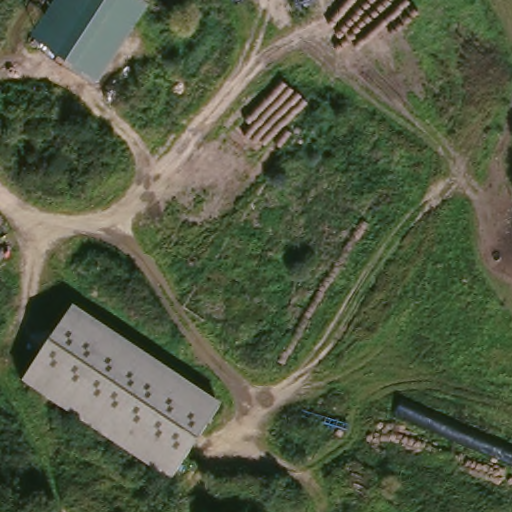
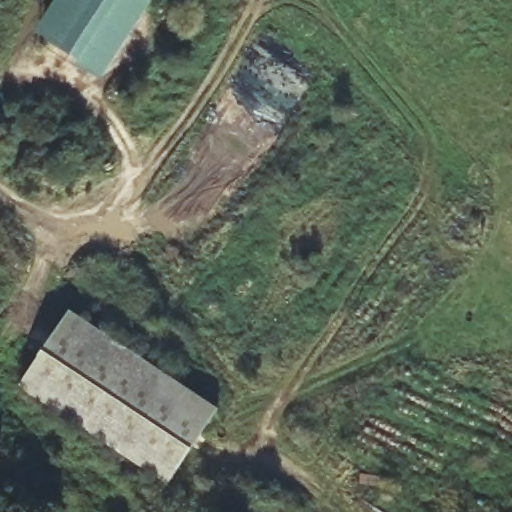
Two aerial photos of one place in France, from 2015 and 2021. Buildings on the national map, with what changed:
unchanged [(151,1),(141,14),(91,81),(29,35),(51,6),(56,0),(150,0),(151,1)]
unchanged [(211,412),(164,482),(19,383),(66,313),(211,412)]

